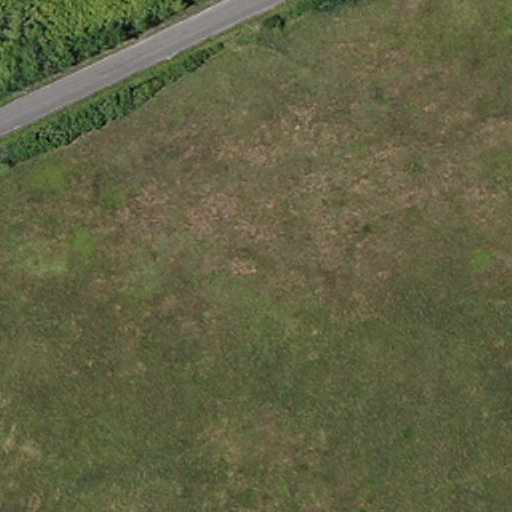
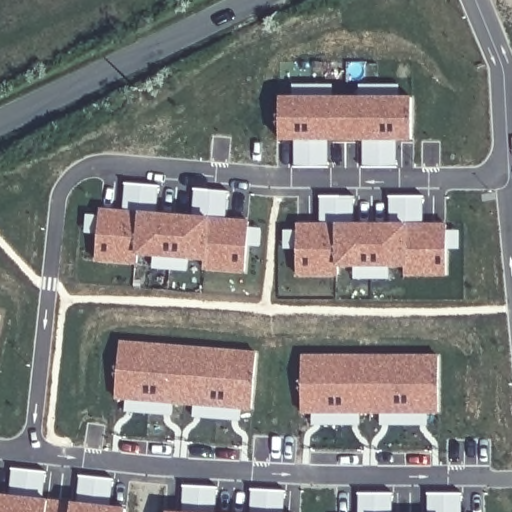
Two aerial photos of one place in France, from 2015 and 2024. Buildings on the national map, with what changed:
new [(327,165),(294,164),(294,127),(279,127),(280,96),(292,96),(292,84),(333,84),(333,96),(360,96),(360,84),(399,84),(399,96),(410,96),(410,141),(397,141),(397,165),(364,165),(364,141),(328,141),(327,165)]
new [(85,230),(87,216),(99,217),(100,208),(130,211),(131,187),(149,188),(147,212),(202,216),(203,195),(225,196),(223,218),(249,220),(245,274),(206,270),(206,262),(190,260),(189,270),(160,268),(161,258),(136,256),(136,264),(96,261),(98,231),(85,230)]
new [(337,277),(297,277),(297,246),(285,246),(285,231),(297,231),(297,223),(321,223),(321,200),(344,199),(344,223),(398,223),(398,199),(423,199),(423,223),(447,223),(447,231),(460,231),(460,249),(447,249),(447,277),(406,277),(406,268),(389,268),(389,279),(355,279),(355,268),(337,268),(337,277)]
new [(253,352),(250,410),(232,409),(231,420),(193,417),(193,406),(174,404),(173,415),(125,412),(125,402),(116,400),(120,341),(253,352)]
new [(437,354),(437,414),(426,415),(426,424),(388,423),(388,414),(352,414),(352,423),(317,423),(317,414),(302,414),(301,355),(437,354)]
new [(20,475),(35,476),(34,497),(86,502),(89,480),(106,481),(104,504),(126,507),(125,512),(0,512),(0,494),(19,496),(20,475)]
new [(207,491),(206,512),(192,512),(193,490),(207,491)]
new [(276,496),(274,512),(259,512),(261,495),(276,496)]
new [(383,497),(383,512),(367,512),(367,497),(383,497)]
new [(453,499),(454,512),(438,512),(438,499),(453,499)]
new [(166,512),(167,511),(192,512),(166,512)]

